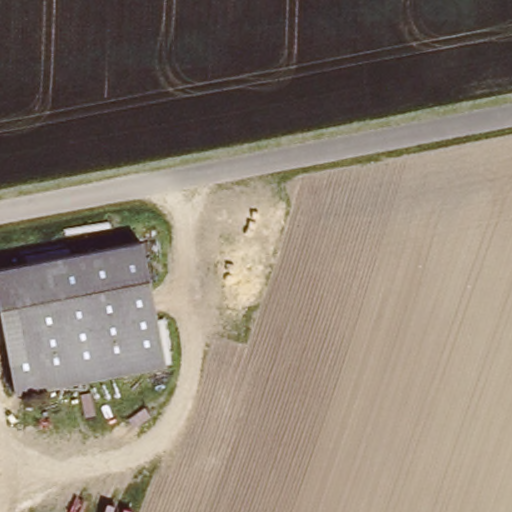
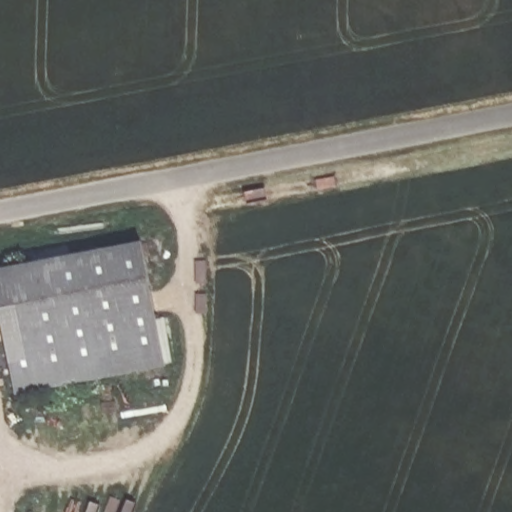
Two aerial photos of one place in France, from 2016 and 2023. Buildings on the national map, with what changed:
unchanged [(0,267),(139,238),(165,361),(17,393),(0,310),(0,267)]

